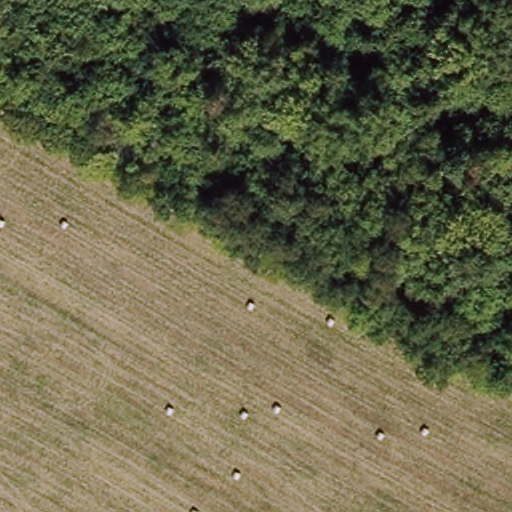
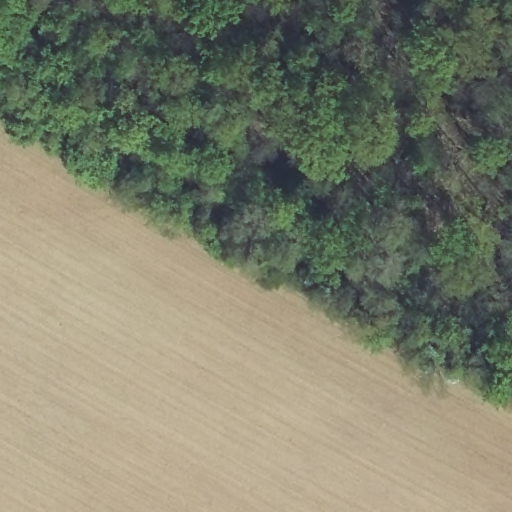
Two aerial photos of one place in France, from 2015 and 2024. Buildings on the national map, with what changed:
[]

